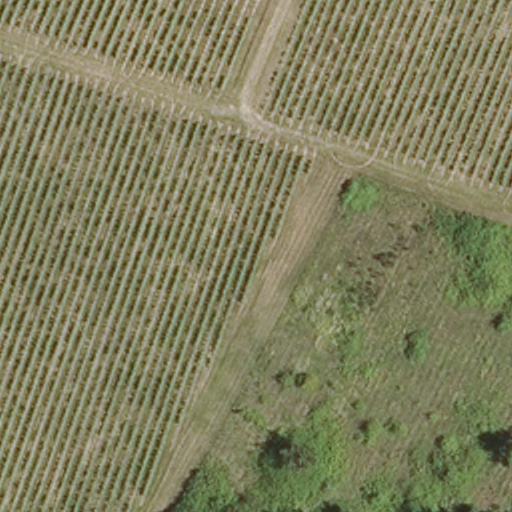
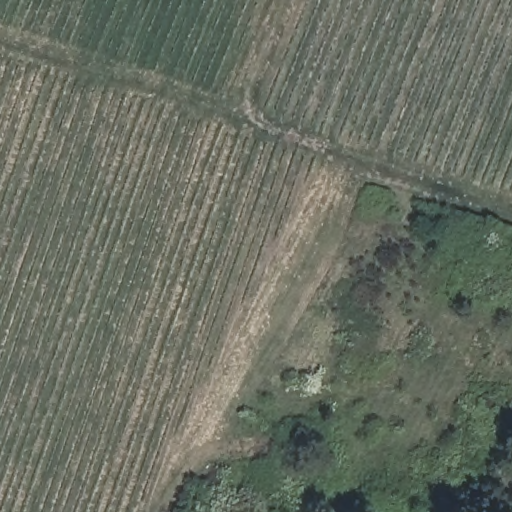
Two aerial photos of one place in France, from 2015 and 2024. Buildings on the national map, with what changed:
[]

